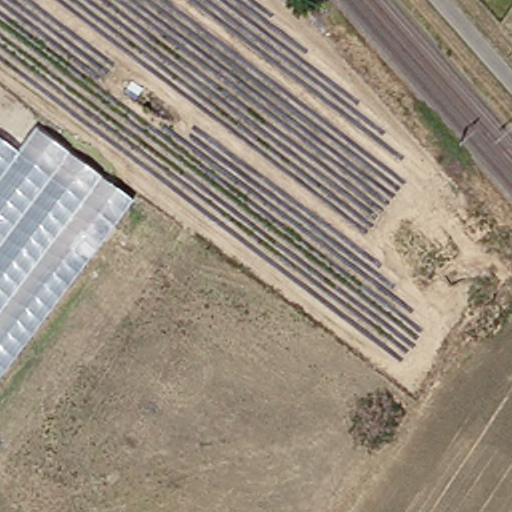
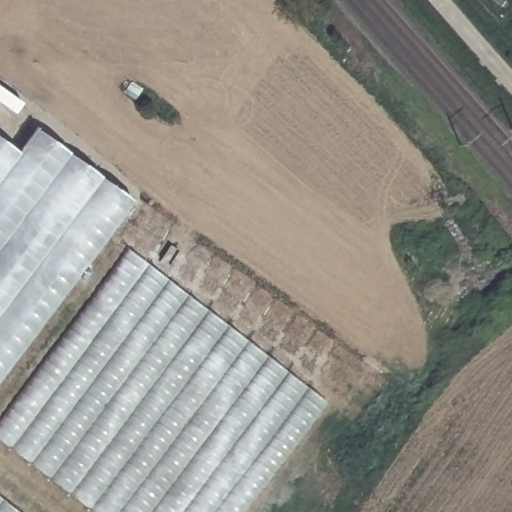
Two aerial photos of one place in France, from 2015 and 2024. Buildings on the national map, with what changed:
new [(0,380),(0,140),(19,155),(36,131),(133,202),(0,380)]
new [(327,401),(243,512),(92,512),(0,441),(0,426),(126,251),(327,401)]
new [(16,512),(0,512),(0,499),(16,512)]

